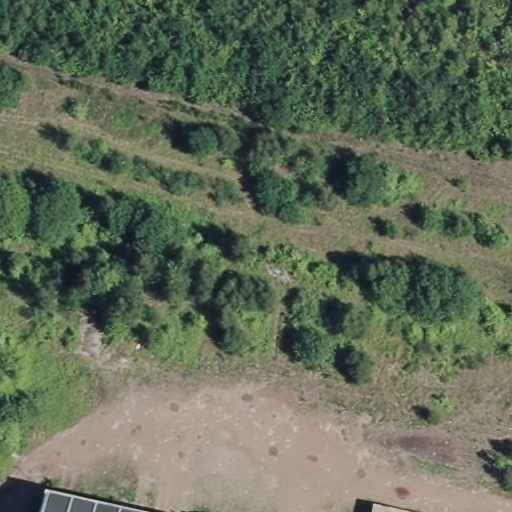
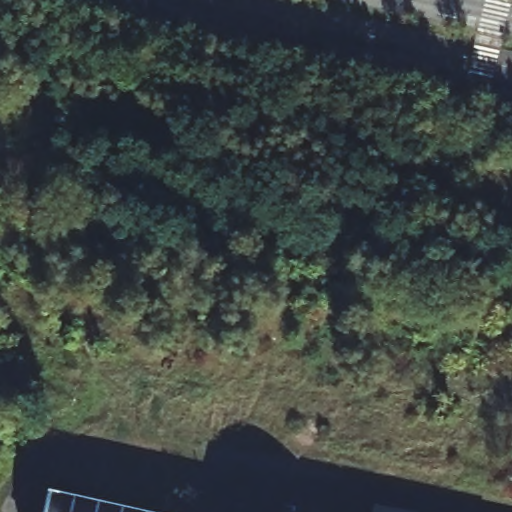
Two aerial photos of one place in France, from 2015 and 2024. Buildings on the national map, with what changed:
unchanged [(49,500),(103,512),(46,512),(49,500)]
unchanged [(400,512),(373,512),(374,506),(400,512)]

